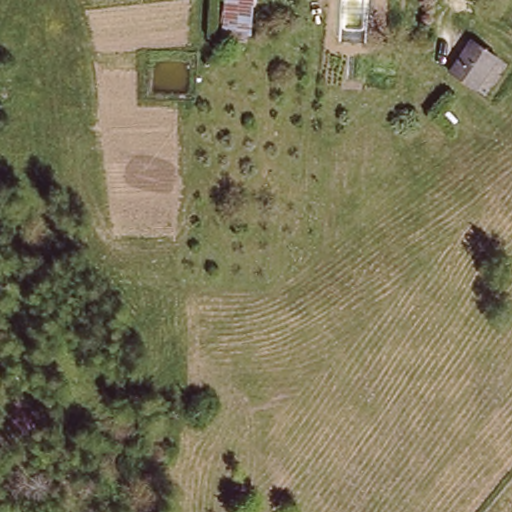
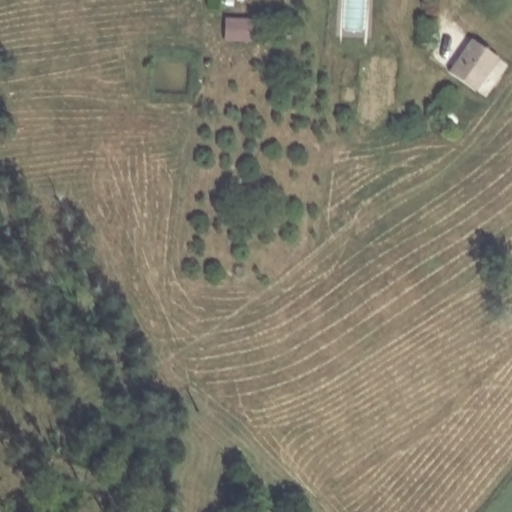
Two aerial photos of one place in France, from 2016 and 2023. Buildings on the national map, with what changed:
unchanged [(250,28),(225,29),(227,0),(251,0),(250,28)]
unchanged [(475,41),(499,60),(475,89),(451,71),(475,41)]

